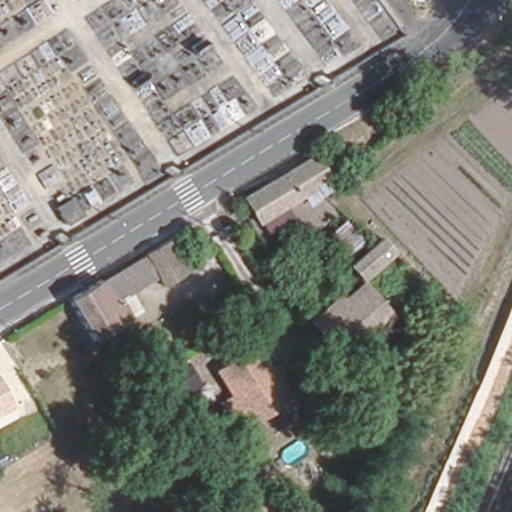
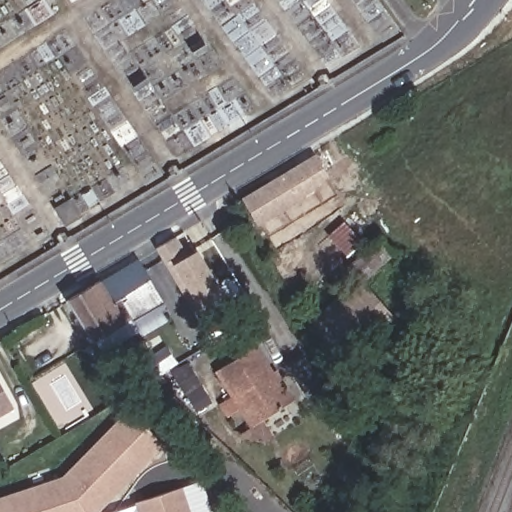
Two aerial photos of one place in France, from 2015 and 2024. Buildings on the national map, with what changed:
demolished [(500,28),(505,37),(486,48),(482,38),(500,28)]
unchanged [(270,230),(263,220),(260,223),(245,197),(280,177),(313,158),(325,177),(333,190),(335,192),(321,200),(321,202),(309,209),(308,208),(302,197),(281,210),(288,220),(270,230)]
unchanged [(60,206),(69,223),(50,233),(41,216),(60,206)]
unchanged [(364,246),(350,259),(330,236),(343,224),(364,246)]
unchanged [(96,281),(98,285),(140,260),(137,256),(167,238),(186,269),(159,285),(152,273),(139,282),(125,290),(130,300),(137,312),(89,342),(64,301),(96,281)]
unchanged [(395,335),(345,378),(311,340),(325,330),(343,314),(343,315),(346,317),(366,301),(395,335)]
unchanged [(244,413),(234,398),(219,408),(211,396),(226,386),(207,357),(245,333),(263,360),(267,356),(286,385),(281,388),(278,391),(244,413)]
unchanged [(14,407),(0,415),(0,383),(14,407)]
unchanged [(278,391),(290,409),(255,431),(228,422),(244,413),(278,391)]
new [(60,475),(127,410),(163,445),(93,512),(0,512),(0,497),(60,475)]
new [(213,512),(192,512),(184,486),(203,480),(213,512)]
new [(192,512),(141,512),(137,502),(184,486),(192,512)]

